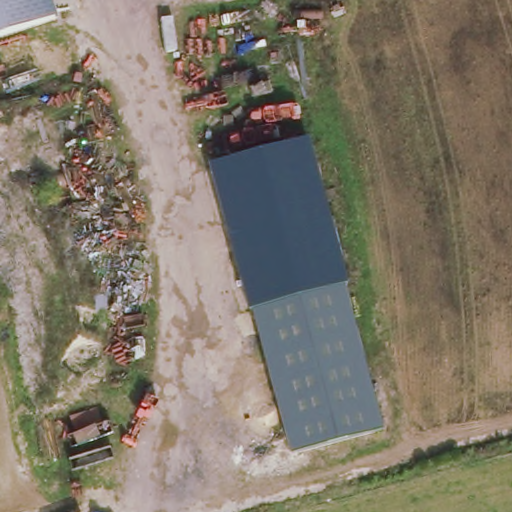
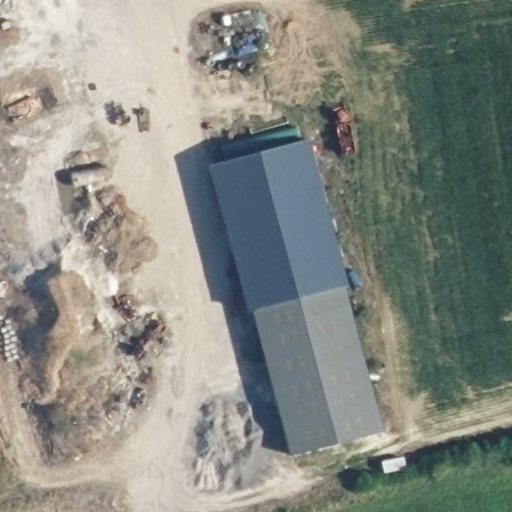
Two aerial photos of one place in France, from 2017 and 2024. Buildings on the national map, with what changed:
demolished [(0,35),(0,0),(48,0),(53,15),(0,35)]
unchanged [(292,453),(252,310),(247,310),(207,165),(305,140),(382,430),(292,453)]

